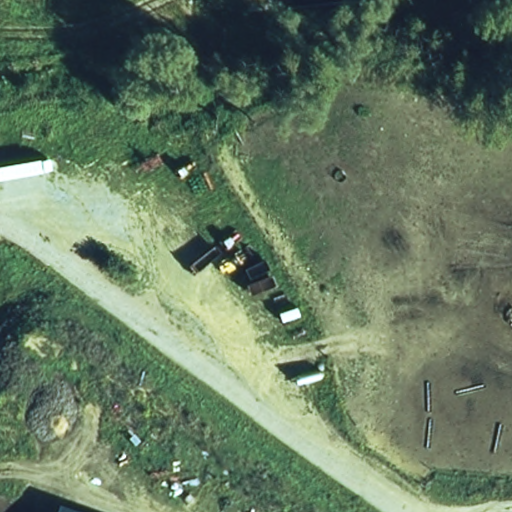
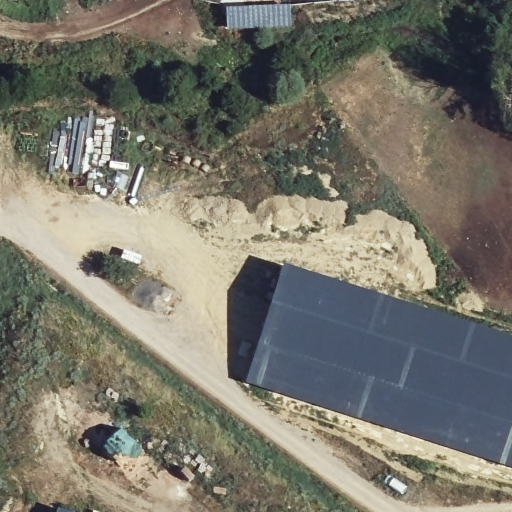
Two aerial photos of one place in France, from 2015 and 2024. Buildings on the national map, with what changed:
new [(512,337),(512,469),(498,465),(412,436),(243,382),(281,264),(512,337)]
unchanged [(63,512),(55,512),(56,510),(63,512)]

